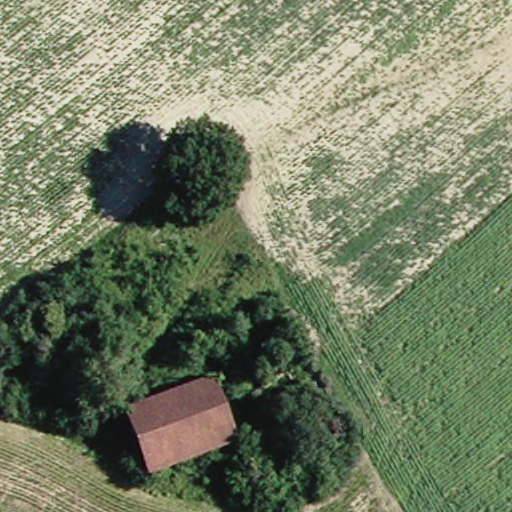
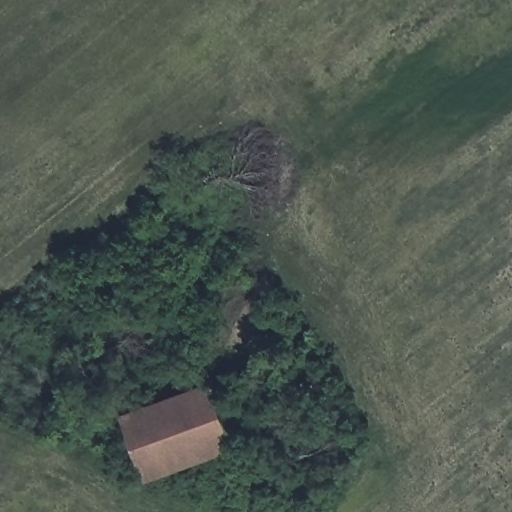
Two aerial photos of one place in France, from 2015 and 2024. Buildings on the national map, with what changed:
unchanged [(202,388),(226,448),(140,481),(116,418),(202,388)]

